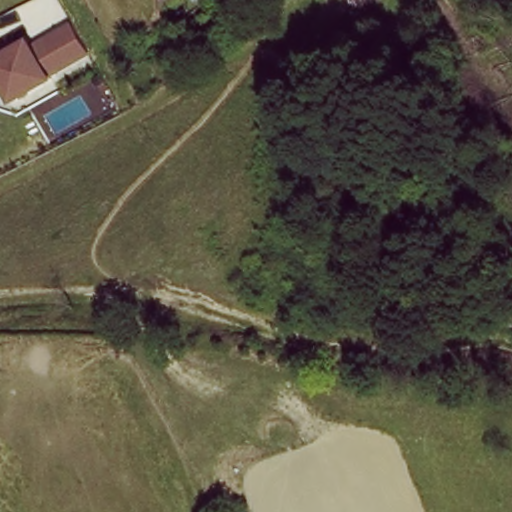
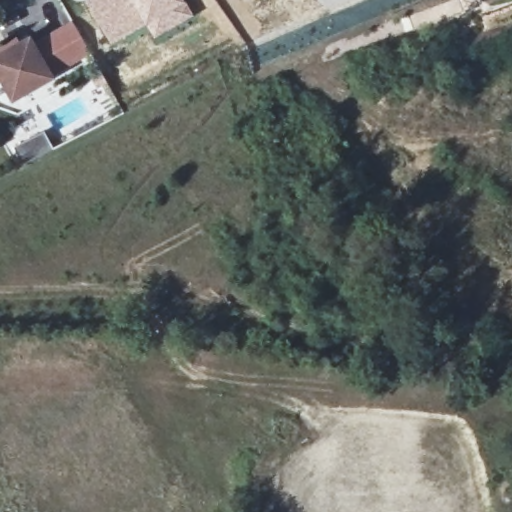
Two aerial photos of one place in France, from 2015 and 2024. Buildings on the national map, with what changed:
new [(186,0),(195,15),(155,38),(147,25),(111,44),(84,1),(85,0),(186,0)]
demolished [(169,0),(163,4),(161,0),(169,0)]
unchanged [(76,31),(90,54),(17,99),(4,77),(0,79),(0,58),(30,40),(34,46),(71,23),(76,31)]

